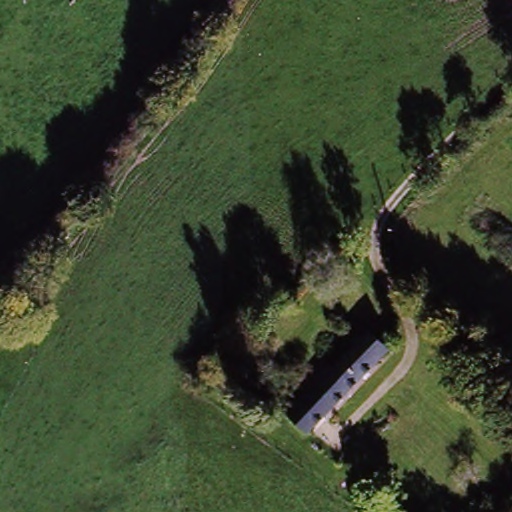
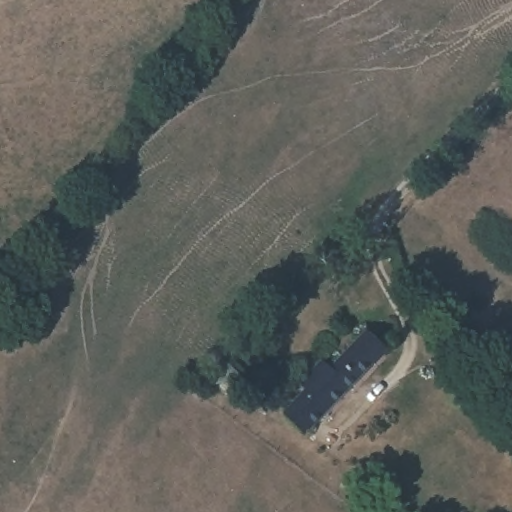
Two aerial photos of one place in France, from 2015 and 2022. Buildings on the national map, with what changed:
unchanged [(285,416),(292,409),(290,400),(303,388),(310,392),(357,346),(374,363),(303,434),(285,416)]

